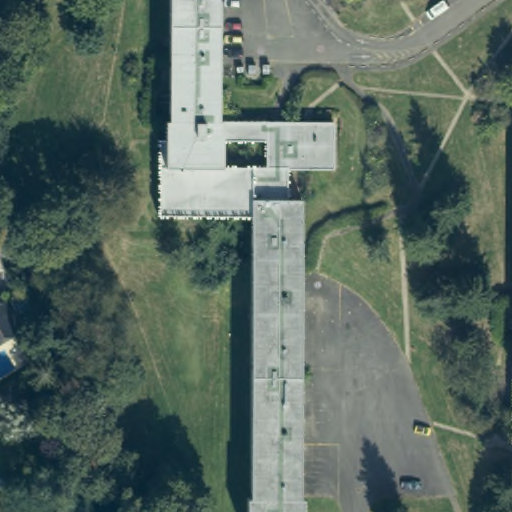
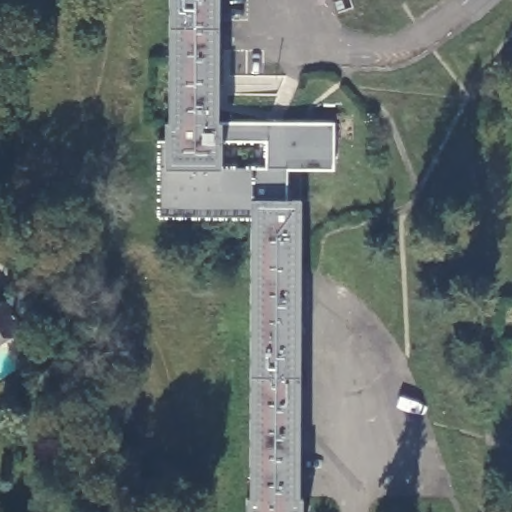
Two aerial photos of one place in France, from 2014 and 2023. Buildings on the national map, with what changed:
unchanged [(247,492),(250,214),(157,212),(157,136),(165,136),(165,117),(168,117),(167,0),(218,0),(217,117),(332,119),(332,165),(287,165),(287,195),(300,195),(298,493),(302,493),(302,512),(245,512),(246,492),(247,492)]
unchanged [(0,299),(0,294),(2,298),(0,299)]
unchanged [(11,325),(0,331),(0,304),(3,310),(23,298),(23,299),(37,322),(17,335),(11,325)]

